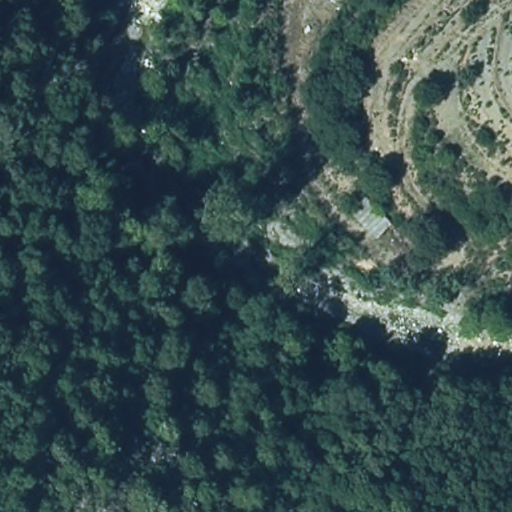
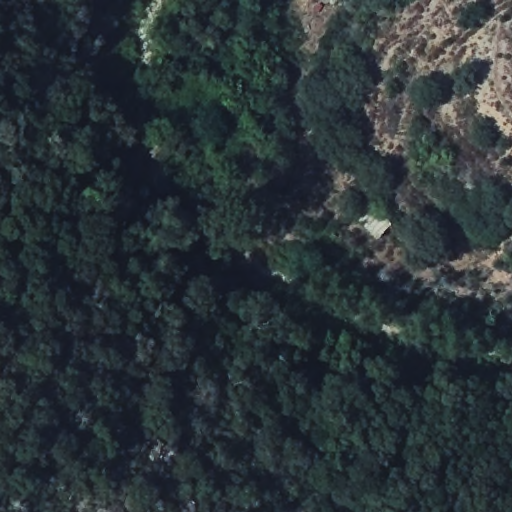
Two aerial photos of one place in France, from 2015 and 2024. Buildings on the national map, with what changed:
unchanged [(366,201),(393,229),(378,244),(349,217),(366,201)]

